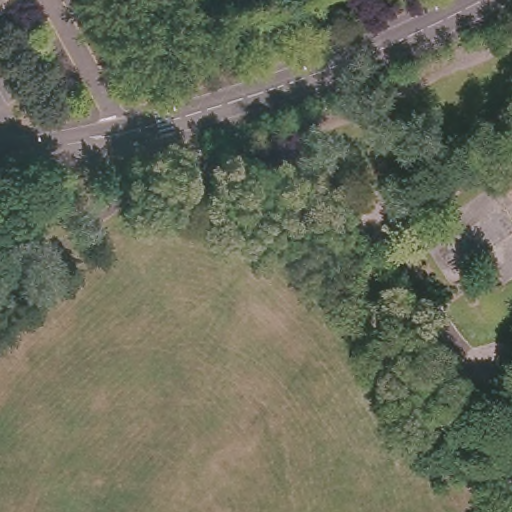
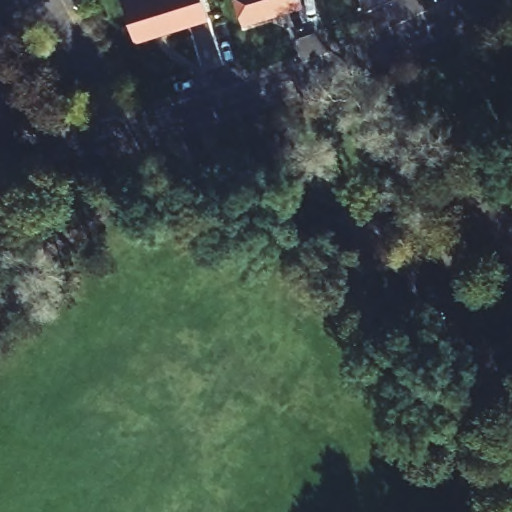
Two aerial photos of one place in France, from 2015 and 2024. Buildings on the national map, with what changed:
unchanged [(16,0),(17,2),(0,12),(0,0),(16,0)]
new [(136,43),(123,0),(205,0),(211,19),(136,43)]
new [(301,0),(303,8),(244,25),(237,0),(301,0)]

